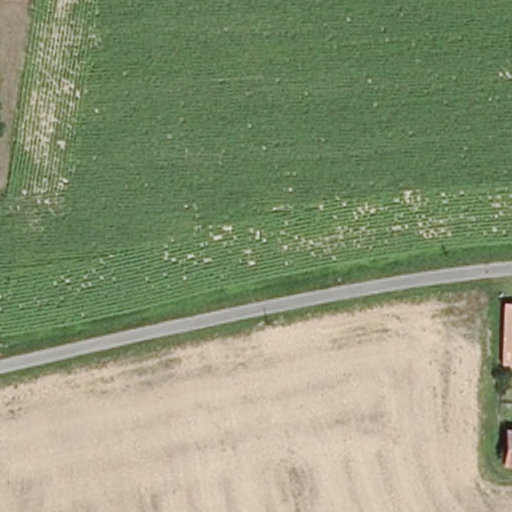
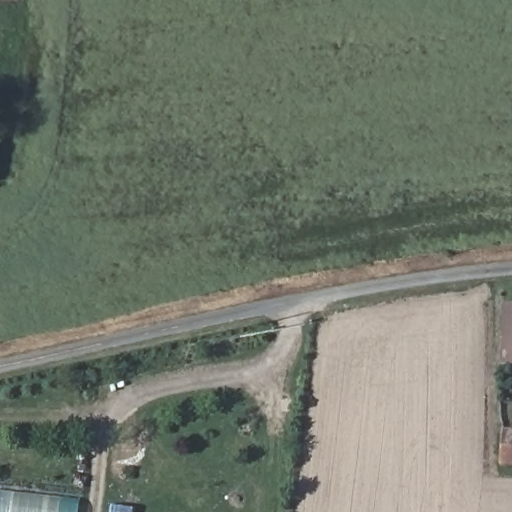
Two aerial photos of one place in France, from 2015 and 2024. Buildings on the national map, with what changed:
unchanged [(502,302),(512,303),(512,364),(500,364),(502,302)]
unchanged [(503,429),(512,429),(512,462),(501,462),(503,429)]
new [(79,499),(77,512),(0,512),(0,491),(79,499)]

